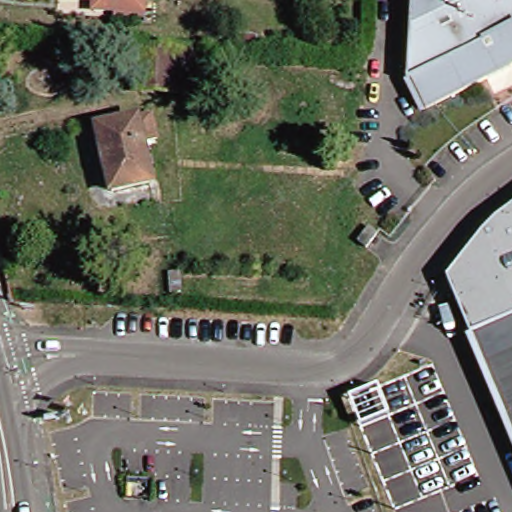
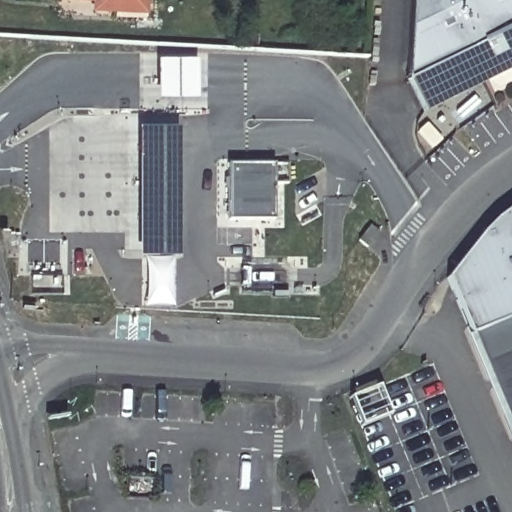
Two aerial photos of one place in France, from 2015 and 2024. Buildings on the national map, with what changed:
unchanged [(118,12),(87,10),(61,9),(53,8),(53,0),(141,0),(140,1),(140,14),(118,12)]
unchanged [(410,0),(512,0),(512,70),(420,114),(405,85),(407,51),(410,0)]
demolished [(189,97),(124,93),(127,51),(158,53),(159,50),(192,53),(189,97)]
new [(155,62),(196,63),(195,103),(154,102),(155,62)]
demolished [(150,183),(105,192),(90,127),(136,117),(150,183)]
new [(183,128),(185,257),(142,257),(141,128),(183,128)]
new [(278,220),(232,220),(231,163),(278,163),(278,220)]
unchanged [(478,355),(455,299),(447,279),(484,233),(496,221),(512,210),(512,436),(501,411),(478,355)]

